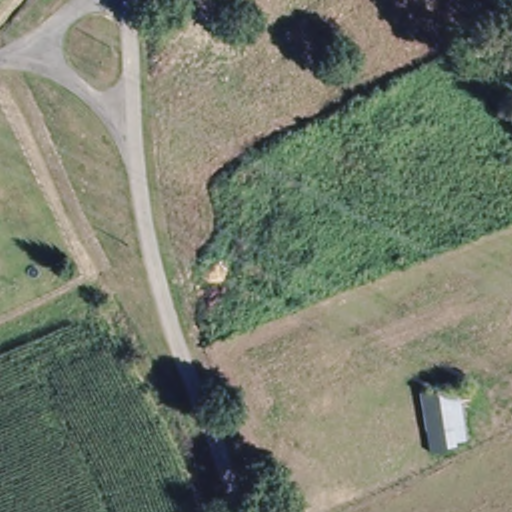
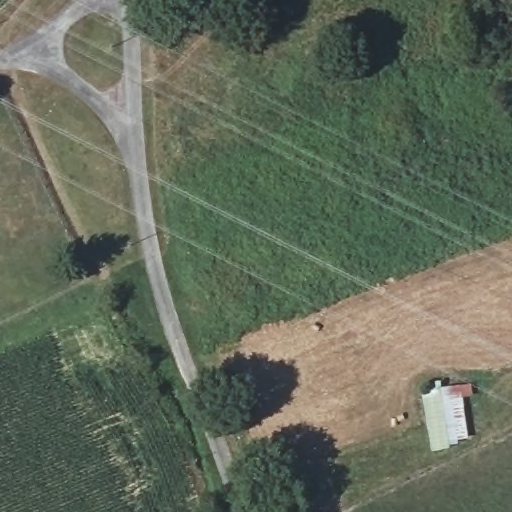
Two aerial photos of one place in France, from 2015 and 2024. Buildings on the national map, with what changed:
unchanged [(445,446),(443,455),(425,457),(414,394),(468,387),(471,402),(457,406),(464,446),(445,446)]

